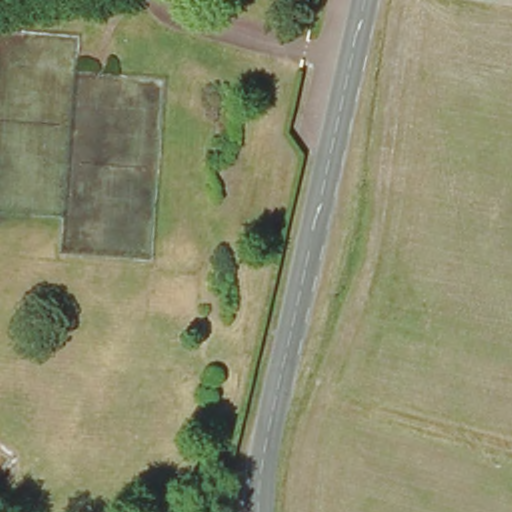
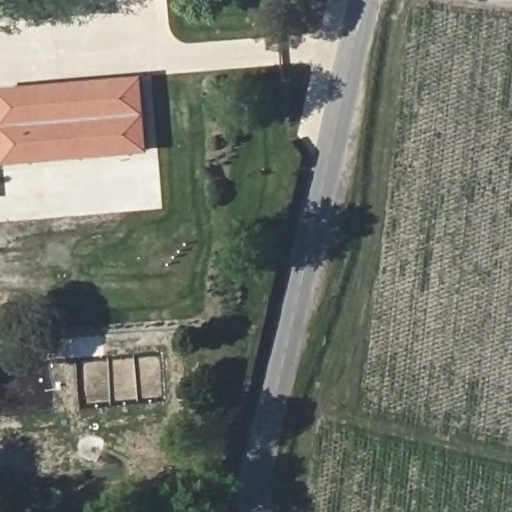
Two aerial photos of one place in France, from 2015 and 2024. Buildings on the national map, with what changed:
new [(4,164),(0,115),(0,87),(145,74),(152,151),(4,164)]

